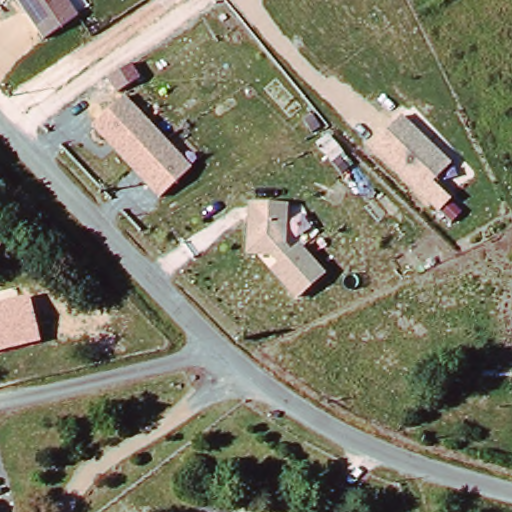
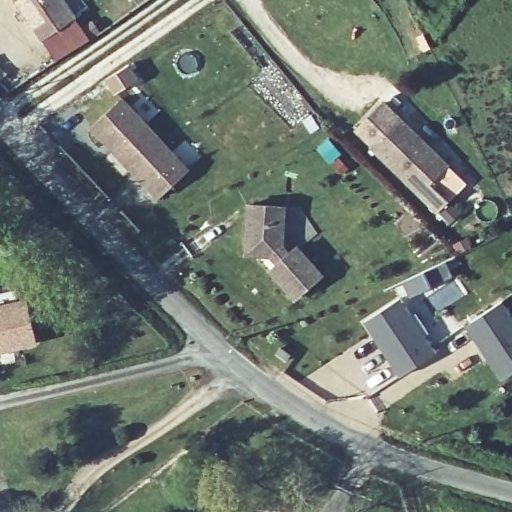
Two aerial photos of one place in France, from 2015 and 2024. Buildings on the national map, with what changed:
unchanged [(17,0),(68,0),(79,16),(44,39),(17,0)]
unchanged [(91,126),(123,95),(192,169),(160,199),(91,126)]
unchanged [(432,182),(451,199),(438,211),(369,145),(354,131),(385,100),(400,113),(451,161),(432,182)]
unchanged [(268,271),(275,264),(269,257),(245,255),(248,201),(288,203),(285,243),(290,249),(298,242),(327,274),(296,301),(268,271)]
unchanged [(39,343),(0,352),(0,304),(29,297),(39,343)]
new [(386,343),(381,345),(366,321),(401,297),(436,350),(403,373),(386,343)]
new [(505,300),(512,311),(512,373),(504,378),(468,323),(505,300)]

